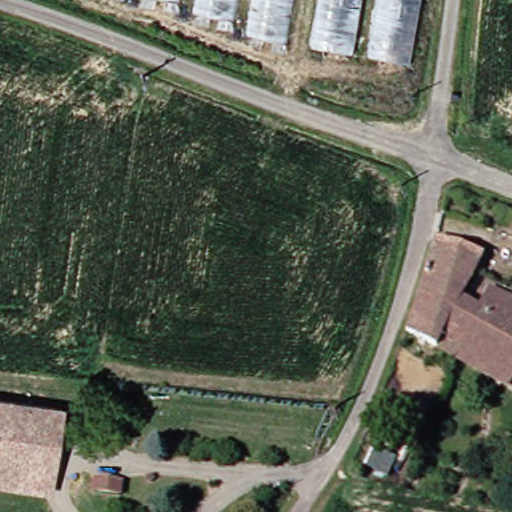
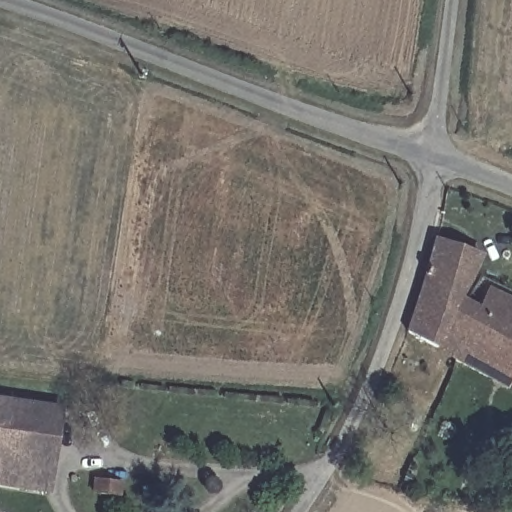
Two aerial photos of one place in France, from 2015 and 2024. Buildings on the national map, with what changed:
demolished [(288,49),(122,0),(297,0),(288,49)]
demolished [(412,51),(313,32),(319,0),(422,0),(412,51)]
unchanged [(441,236),(485,258),(480,270),(477,279),(435,257),(441,236)]
unchanged [(435,257),(477,279),(469,298),(475,302),(468,323),(475,328),(463,357),(412,327),(435,257)]
demolished [(501,281),(512,257),(512,286),(501,281)]
unchanged [(496,377),(463,357),(475,328),(468,323),(475,302),(487,308),(497,290),(512,297),(512,386),(496,377)]
unchanged [(29,484),(0,480),(0,462),(0,457),(0,456),(0,396),(64,406),(59,439),(35,435),(29,484)]
unchanged [(50,488),(29,484),(35,435),(59,439),(50,488)]
unchanged [(124,483),(121,496),(93,493),(94,480),(124,483)]

